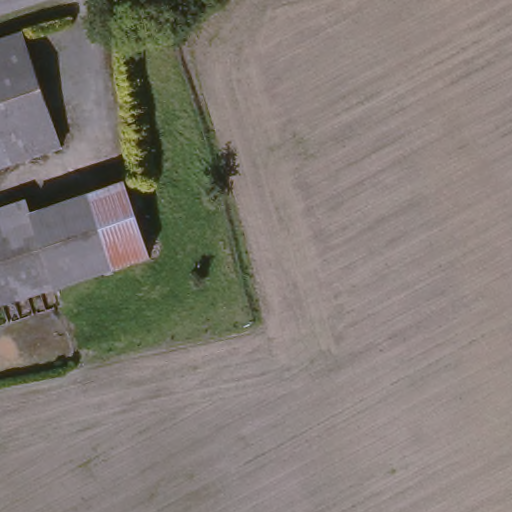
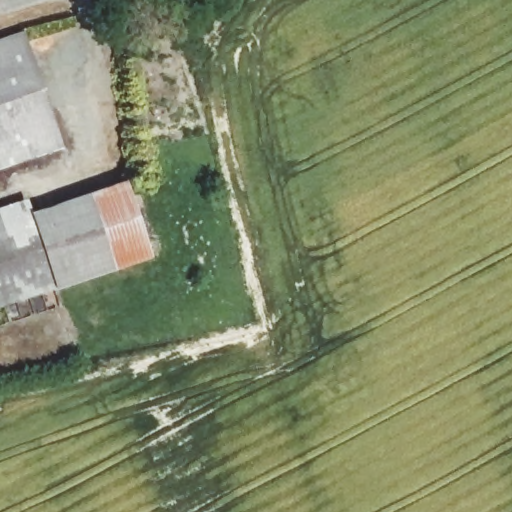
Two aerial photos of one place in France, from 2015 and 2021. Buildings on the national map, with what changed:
unchanged [(22,37),(60,154),(0,173),(0,45),(22,37)]
unchanged [(26,209),(32,226),(72,212),(125,194),(147,266),(0,315),(0,217),(26,209)]

